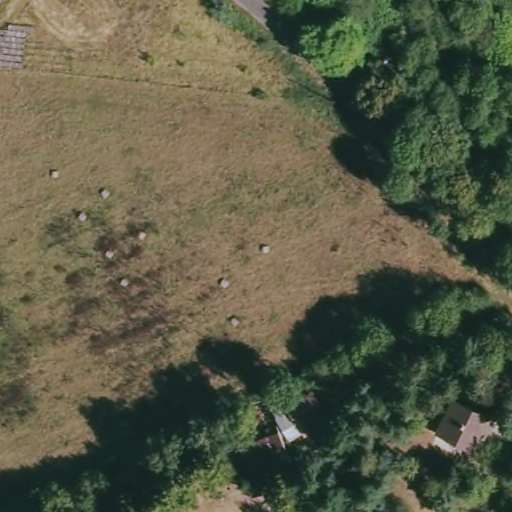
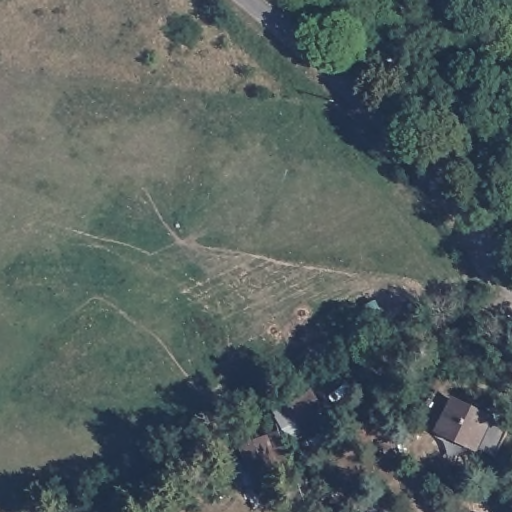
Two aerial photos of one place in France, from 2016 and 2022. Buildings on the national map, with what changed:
unchanged [(409,21),(422,33),(399,63),(369,48),(383,27),(395,31),(409,21)]
unchanged [(301,430),(289,403),(313,393),(319,408),(313,411),(318,423),(301,430)]
unchanged [(449,400),(486,415),(474,442),(437,425),(449,400)]
unchanged [(286,467),(246,483),(228,442),(267,424),(286,467)]

